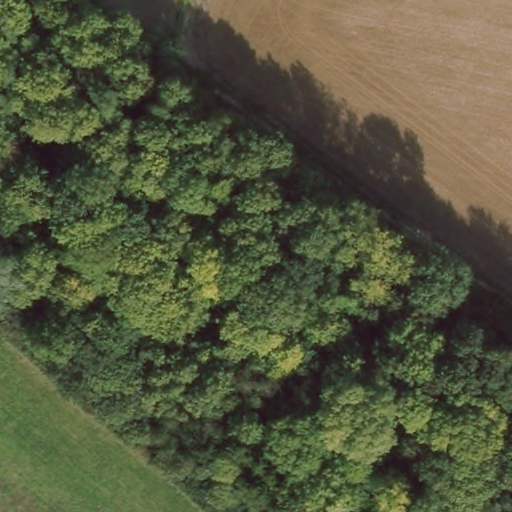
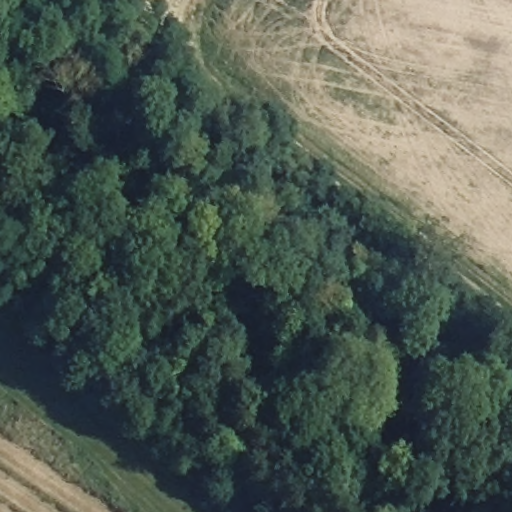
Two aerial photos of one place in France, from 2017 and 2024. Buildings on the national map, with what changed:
unchanged [(366,259),(355,273),(334,257),(345,242),(366,259)]

